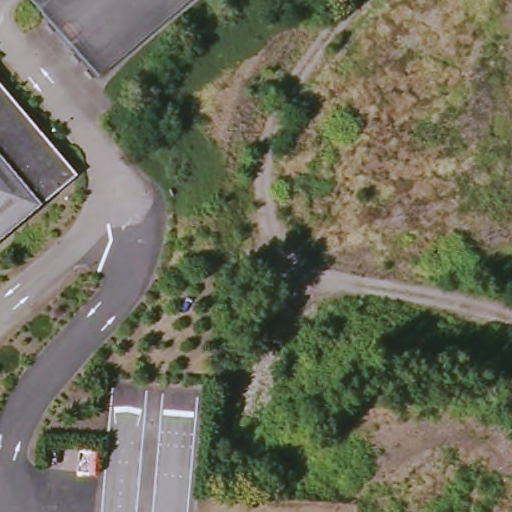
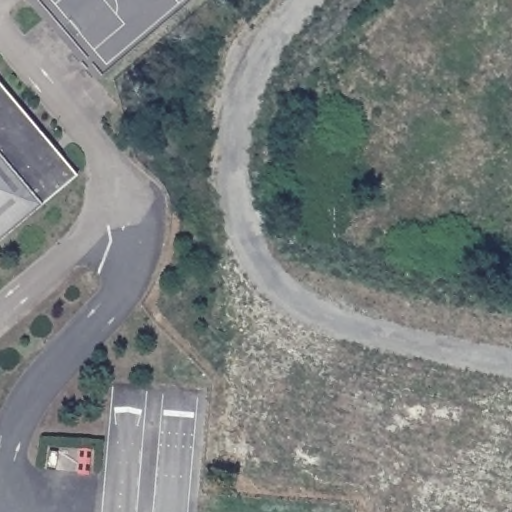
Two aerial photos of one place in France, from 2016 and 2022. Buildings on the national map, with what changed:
unchanged [(0,246),(0,80),(80,177),(0,246)]

